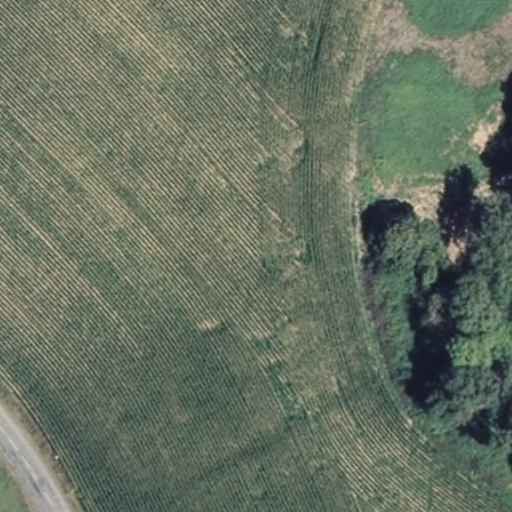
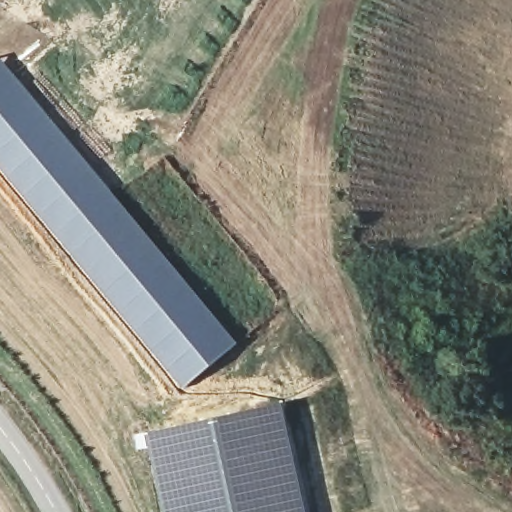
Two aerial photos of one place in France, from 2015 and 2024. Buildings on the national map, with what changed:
new [(12,76),(0,86),(0,60),(12,76)]
new [(235,347),(186,387),(0,160),(0,86),(12,76),(235,347)]
new [(308,512),(162,512),(148,447),(137,450),(134,435),(284,402),(308,512)]

